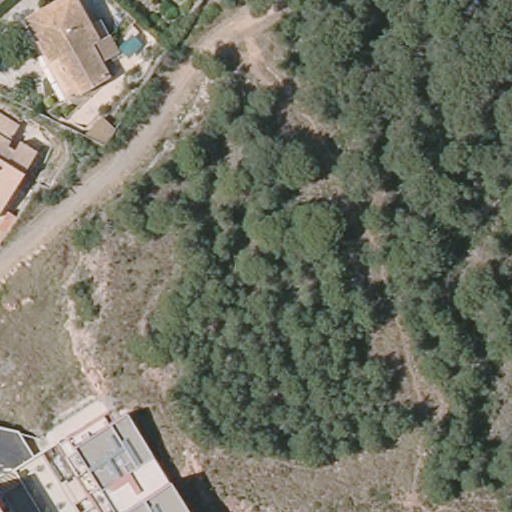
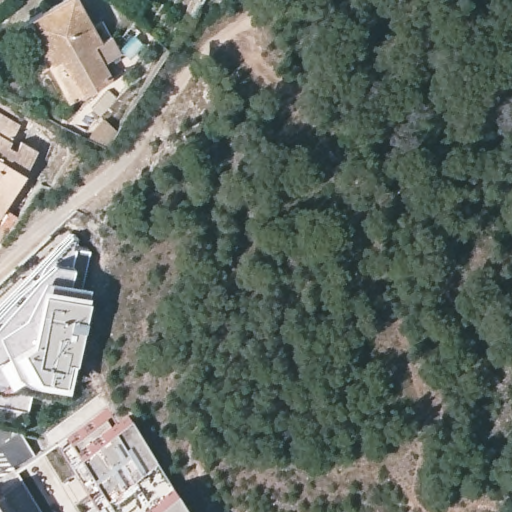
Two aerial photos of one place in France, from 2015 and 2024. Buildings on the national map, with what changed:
unchanged [(63,0),(71,0),(97,46),(107,41),(117,56),(101,68),(108,82),(76,100),(75,98),(64,104),(20,23),(63,0)]
unchanged [(24,126),(11,147),(19,152),(25,143),(41,153),(0,218),(0,111),(24,126)]
unchanged [(103,116),(118,129),(107,146),(84,135),(103,116)]
unchanged [(0,222),(16,233),(7,241),(0,237),(0,222)]
new [(75,246),(90,250),(62,397),(32,390),(22,431),(0,426),(0,298),(69,235),(76,236),(75,246)]
unchanged [(107,411),(115,419),(126,415),(142,443),(155,437),(169,461),(158,466),(190,512),(0,512),(0,473),(107,411)]

